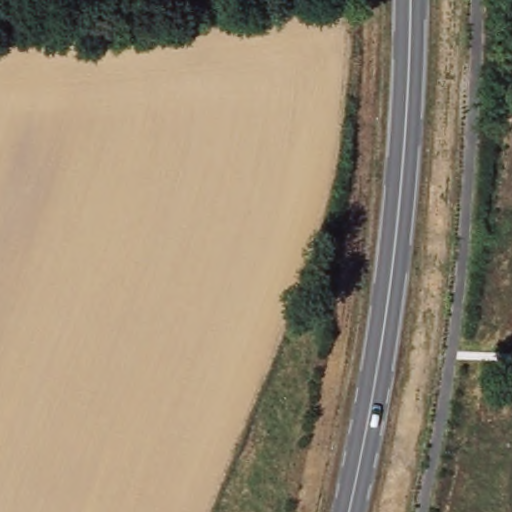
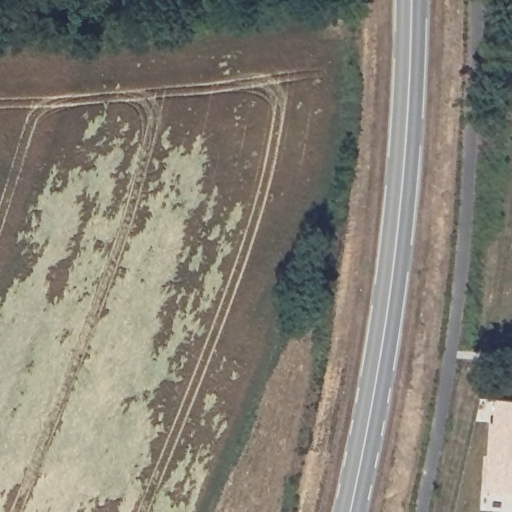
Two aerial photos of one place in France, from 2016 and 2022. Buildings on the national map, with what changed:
new [(490,423),(494,423),(496,400),(512,401),(512,493),(486,492),(490,423)]

